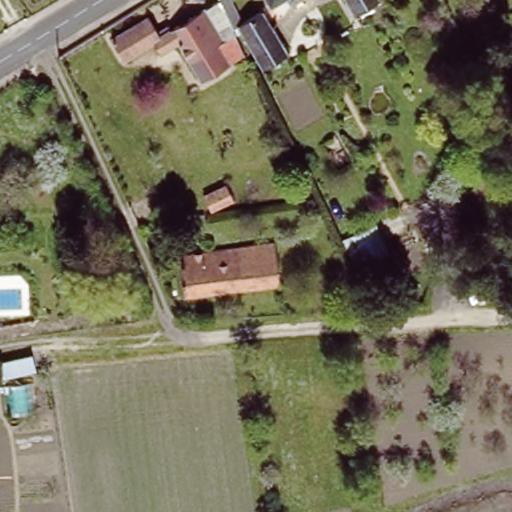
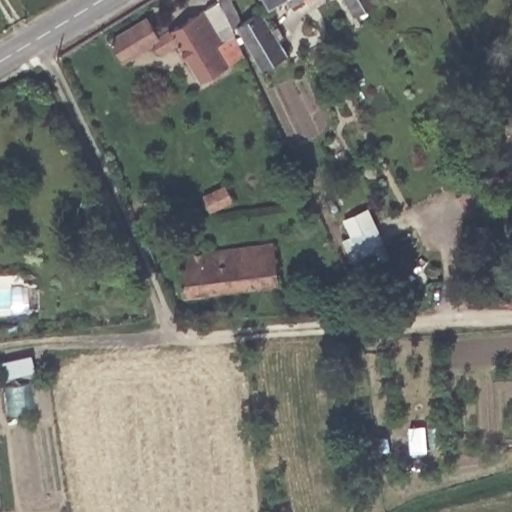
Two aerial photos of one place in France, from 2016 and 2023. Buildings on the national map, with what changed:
unchanged [(220,0),(234,30),(239,39),(228,45),(223,37),(180,64),(161,33),(220,0)]
unchanged [(290,50),(269,62),(243,24),(234,30),(220,0),(237,0),(251,20),(265,10),(290,50)]
unchanged [(270,0),(282,0),(273,5),(270,0)]
unchanged [(354,0),(378,0),(360,10),(354,0)]
unchanged [(148,14),(159,33),(120,55),(109,36),(148,14)]
unchanged [(224,183),(237,203),(212,219),(201,195),(224,183)]
unchanged [(274,240),(279,275),(184,287),(180,251),(274,240)]
unchanged [(35,341),(39,355),(8,363),(4,350),(35,341)]

